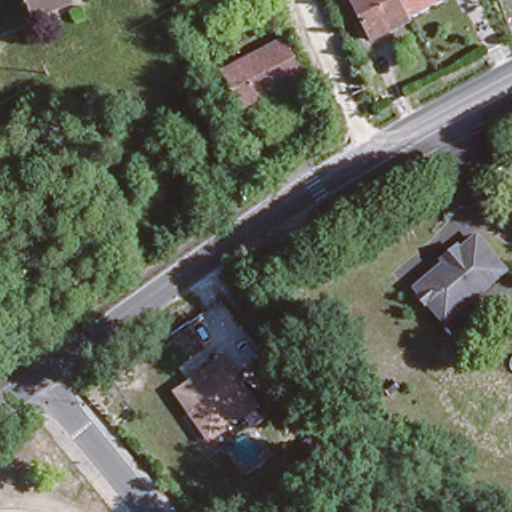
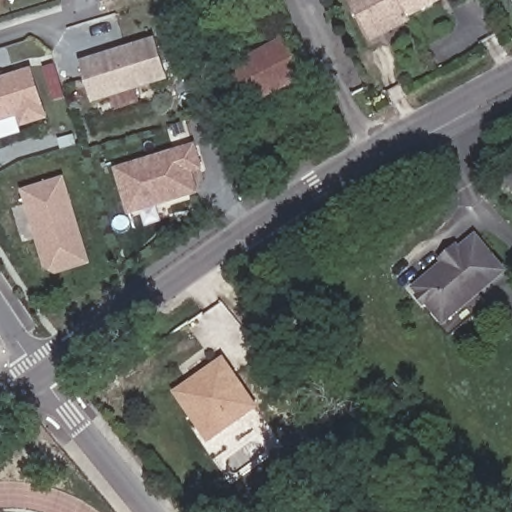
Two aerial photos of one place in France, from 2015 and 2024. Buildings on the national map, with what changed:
demolished [(27,15),(22,0),(74,0),(74,1),(27,15)]
unchanged [(412,0),(420,18),(377,38),(356,0),(412,0)]
unchanged [(429,15),(420,18),(412,0),(427,0),(422,2),(429,15)]
unchanged [(229,46),(211,50),(200,23),(219,16),(229,46)]
new [(94,104),(81,61),(155,38),(168,81),(94,104)]
unchanged [(303,81),(274,96),(282,111),(252,125),(236,93),(244,90),(237,76),(250,71),(244,56),(282,38),(303,81)]
new [(18,116),(0,122),(0,78),(33,68),(50,119),(22,128),(18,116)]
new [(200,168),(189,172),(197,198),(171,205),(174,217),(146,225),(143,215),(132,218),(118,170),(194,147),(200,168)]
new [(56,275),(45,270),(21,189),(64,176),(91,265),(56,275)]
unchanged [(505,276),(440,319),(414,281),(444,263),(440,257),(457,246),(462,252),(480,240),(505,276)]
unchanged [(261,408),(218,438),(227,450),(208,462),(198,449),(205,442),(173,391),(225,358),(261,408)]

